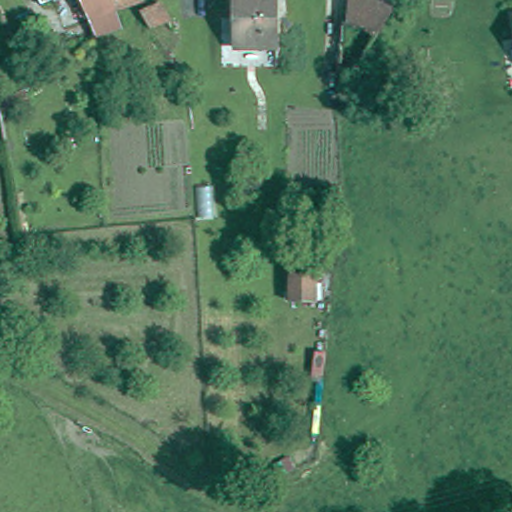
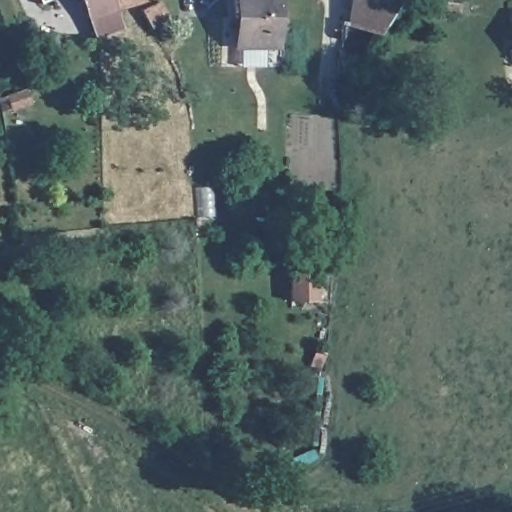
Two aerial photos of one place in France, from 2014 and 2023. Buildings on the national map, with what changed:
unchanged [(40,3),(39,0),(48,0),(40,3)]
unchanged [(88,20),(80,0),(113,0),(116,9),(88,20)]
unchanged [(116,9),(113,0),(139,0),(116,9)]
unchanged [(141,9),(157,0),(161,0),(171,19),(152,29),(141,9)]
unchanged [(236,16),(236,0),(279,0),(279,47),(240,46),(236,46),(236,16)]
unchanged [(369,34),(341,27),(343,0),(388,0),(392,1),(369,34)]
unchanged [(392,1),(388,0),(392,0),(392,1)]
unchanged [(369,34),(346,79),(331,76),(334,25),(341,27),(369,34)]
unchanged [(293,271),(319,271),(318,301),(293,300),(293,271)]

